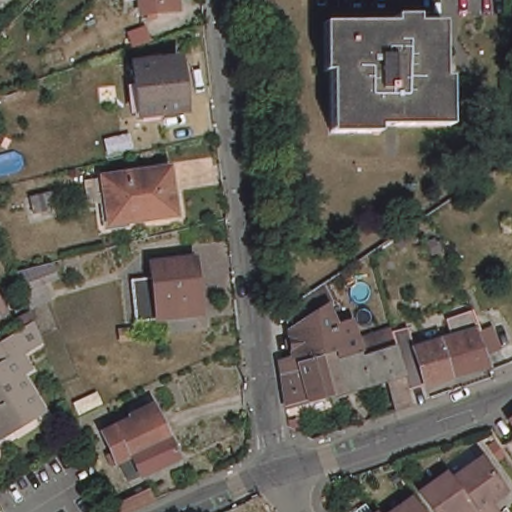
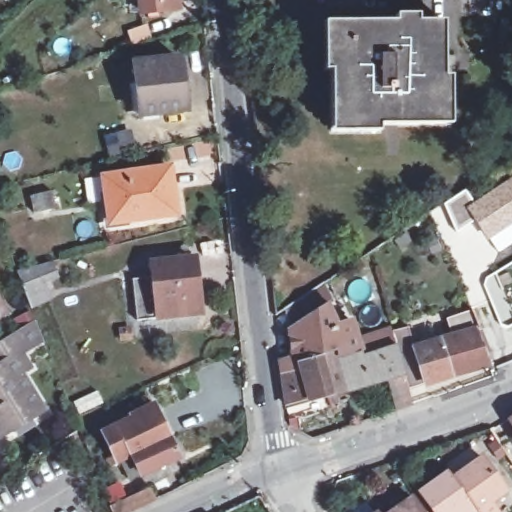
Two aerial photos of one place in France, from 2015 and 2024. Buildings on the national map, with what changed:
unchanged [(178,7),(142,11),(141,0),(178,0),(178,7)]
unchanged [(332,132),(330,72),(325,72),(324,22),(396,21),(396,14),(420,13),(420,21),(446,20),(446,75),(452,76),(452,125),(381,125),(381,132),(332,132)]
unchanged [(181,58),(186,109),(141,114),(135,62),(181,58)]
unchanged [(130,132),(135,147),(110,153),(105,139),(130,132)]
unchanged [(171,167),(178,214),(110,222),(105,177),(171,167)]
new [(487,241),(473,221),(456,232),(440,205),(465,189),(473,201),(512,175),(512,244),(497,255),(487,241)]
unchanged [(52,190),(56,207),(35,212),(30,195),(52,190)]
unchanged [(195,258),(201,313),(138,319),(135,278),(157,276),(156,262),(195,258)]
unchanged [(60,278),(46,283),(52,300),(33,307),(18,269),(53,261),(60,278)]
unchanged [(447,337),(452,335),(454,338),(465,335),(457,317),(474,310),(475,310),(482,330),(491,327),(501,351),(492,353),(487,356),(491,366),(410,390),(413,405),(399,409),(390,377),(333,392),(323,358),(298,363),(298,371),(285,373),(284,362),(298,359),(292,320),(290,305),(296,301),(326,281),(335,301),(332,302),(340,325),(356,321),(358,332),(386,323),(410,322),(415,342),(410,343),(412,351),(447,340),(447,337)]
unchanged [(7,312),(0,316),(0,300),(7,312)]
unchanged [(33,317),(41,338),(24,348),(32,362),(32,363),(23,369),(46,405),(36,412),(26,411),(15,417),(13,426),(4,432),(0,430),(0,338),(1,337),(33,317)]
unchanged [(290,405),(285,373),(298,371),(298,363),(323,358),(333,392),(290,405)]
unchanged [(110,448),(100,427),(132,412),(130,407),(151,398),(155,407),(175,450),(125,473),(117,456),(115,457),(110,448)]
unchanged [(512,433),(506,425),(512,421),(512,433)]
unchanged [(506,490),(490,501),(498,512),(478,512),(461,488),(454,477),(482,457),(506,490)]
unchanged [(478,512),(435,512),(421,492),(450,472),(454,477),(461,488),(478,512)]
unchanged [(151,487),(156,498),(126,512),(114,512),(111,505),(151,487)]
unchanged [(423,512),(393,512),(413,497),(423,512)]

